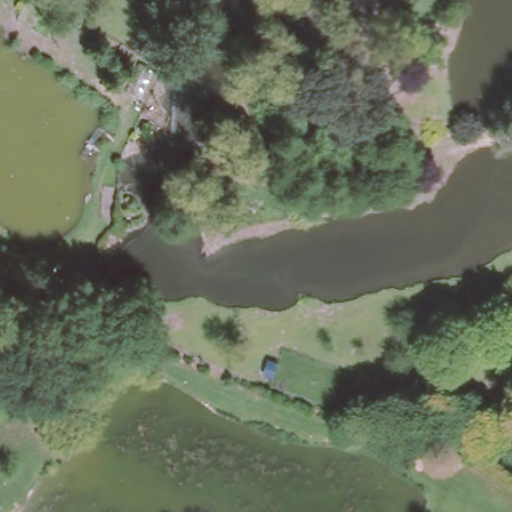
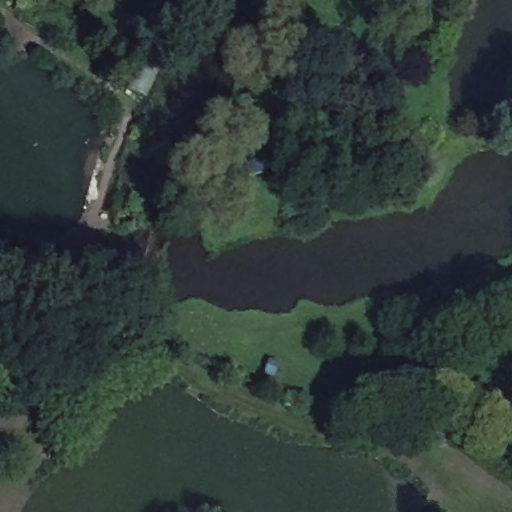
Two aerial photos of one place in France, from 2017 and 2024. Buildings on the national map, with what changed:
unchanged [(454,420),(454,433),(436,433),(436,420),(454,420)]

